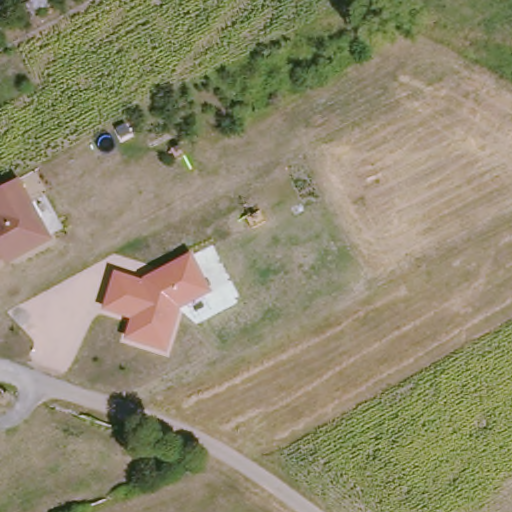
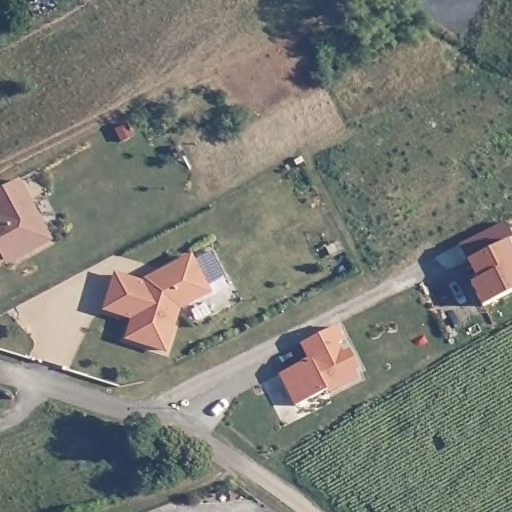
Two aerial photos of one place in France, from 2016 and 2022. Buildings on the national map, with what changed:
unchanged [(7,267),(4,262),(0,264),(0,190),(22,179),(55,239),(7,267)]
new [(505,221),(512,235),(512,237),(507,240),(512,251),(512,291),(482,306),(470,283),(477,280),(467,258),(460,244),(505,221)]
unchanged [(182,311),(170,354),(127,341),(135,320),(102,312),(115,273),(145,281),(195,254),(215,292),(182,311)]
new [(358,367),(355,369),(358,377),(295,404),(280,374),(308,362),(300,343),(337,327),(358,367)]

